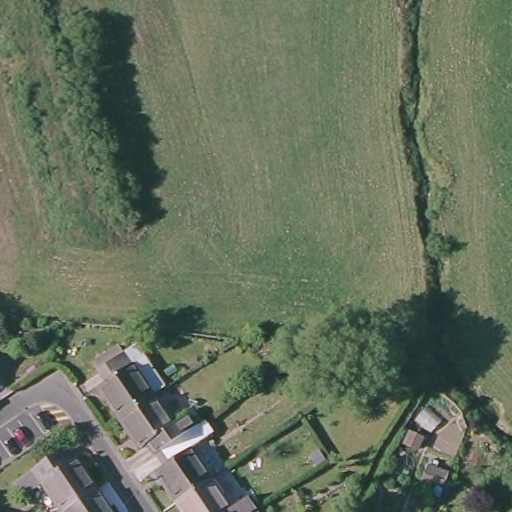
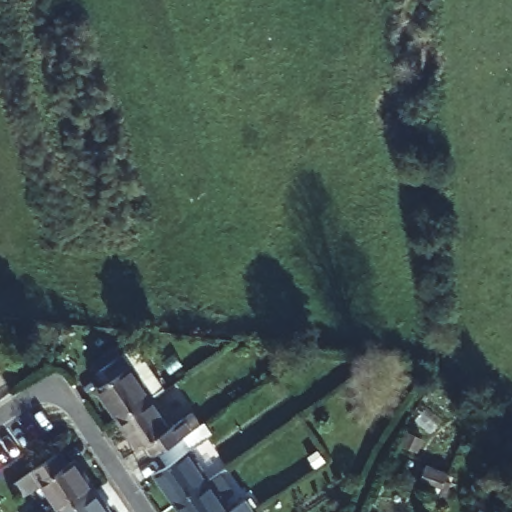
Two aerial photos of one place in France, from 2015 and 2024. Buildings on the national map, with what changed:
unchanged [(148,390),(115,412),(95,382),(101,378),(94,366),(128,342),(156,384),(148,390)]
unchanged [(151,450),(143,440),(136,444),(118,417),(115,412),(148,390),(168,420),(188,408),(195,420),(151,450)]
unchanged [(171,496),(152,466),(159,462),(153,453),(151,450),(195,420),(204,433),(186,446),(204,474),(171,496)]
unchanged [(27,466),(56,446),(65,459),(71,454),(93,485),(59,507),(39,477),(19,490),(10,478),(27,466)]
unchanged [(444,501),(439,498),(443,487),(423,478),(426,472),(429,465),(449,472),(446,480),(453,483),(444,501)]
unchanged [(248,507),(241,512),(182,512),(174,500),(171,496),(204,474),(225,505),(242,494),(249,506),(248,507)]
unchanged [(93,485),(98,492),(112,512),(62,512),(59,507),(93,485)]
unchanged [(248,507),(252,512),(241,512),(248,507)]

